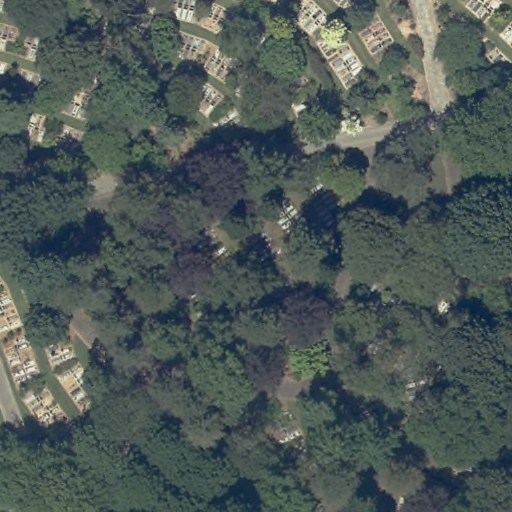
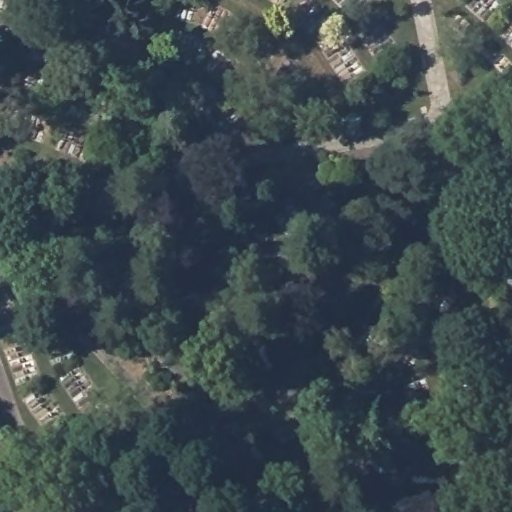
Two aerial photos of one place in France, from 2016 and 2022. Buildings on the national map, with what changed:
[]

